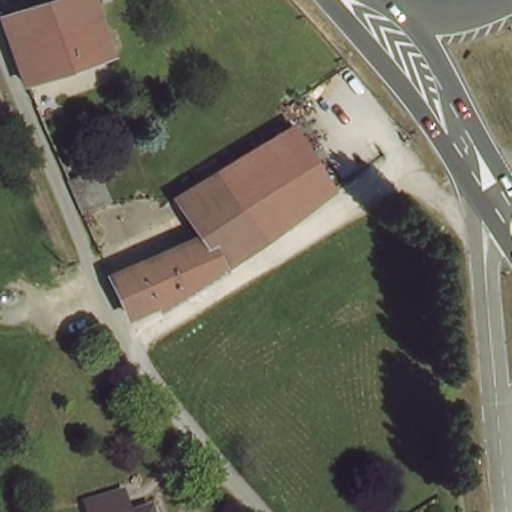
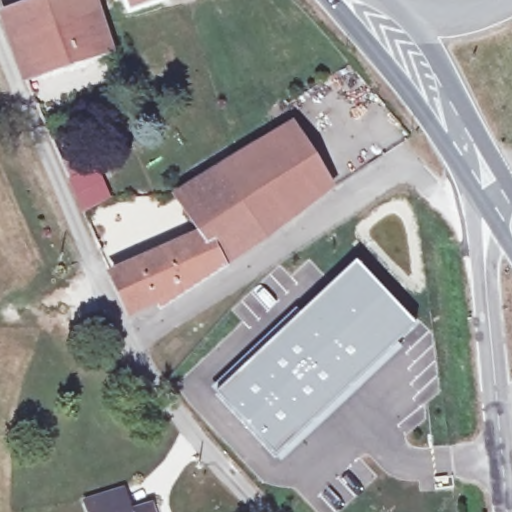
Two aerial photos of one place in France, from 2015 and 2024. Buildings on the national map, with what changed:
unchanged [(41,0),(92,0),(97,14),(107,48),(29,79),(3,16),(41,0)]
unchanged [(287,127),(329,193),(329,194),(279,230),(209,275),(195,239),(173,197),(287,127)]
unchanged [(109,194),(95,209),(80,174),(95,160),(109,194)]
unchanged [(163,251),(195,239),(209,275),(156,310),(150,302),(125,312),(110,277),(163,251)]
new [(291,313),(294,316),(356,261),(417,325),(399,345),(401,347),(279,462),(242,426),(210,388),(291,313)]
unchanged [(122,496),(126,512),(85,512),(83,505),(122,496)]

